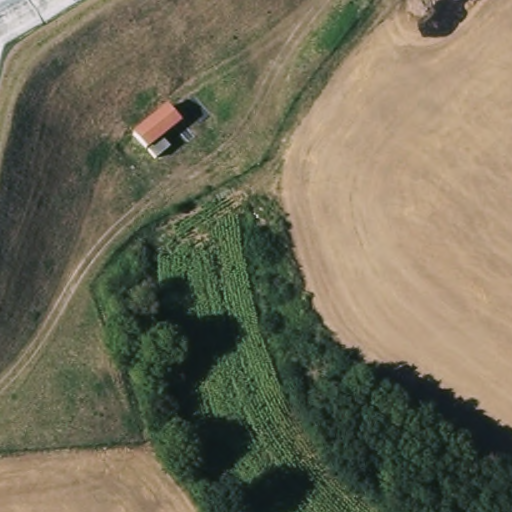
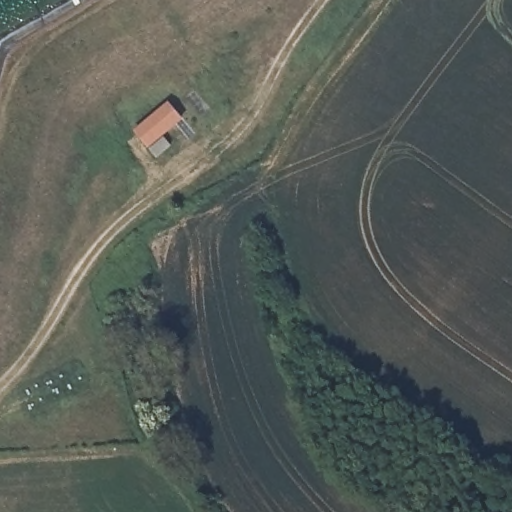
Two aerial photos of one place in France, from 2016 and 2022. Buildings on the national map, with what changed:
unchanged [(167,130),(148,146),(135,132),(136,131),(170,103),(181,117),(167,130)]
unchanged [(156,157),(150,149),(164,137),(170,145),(156,157)]

